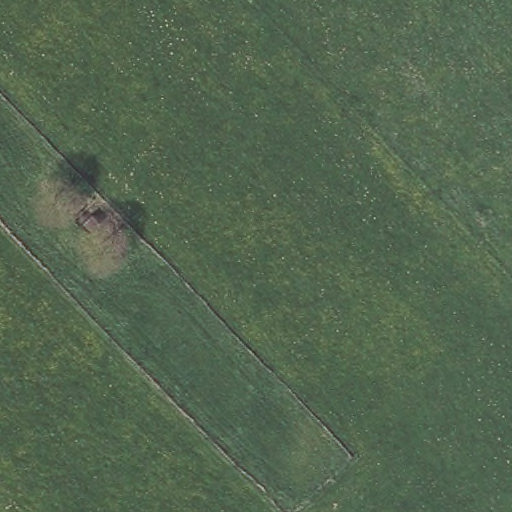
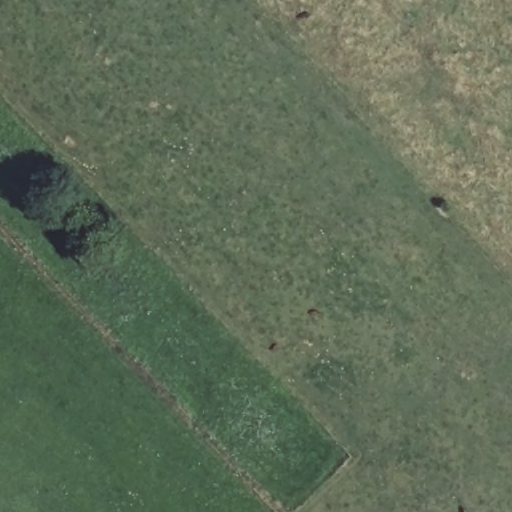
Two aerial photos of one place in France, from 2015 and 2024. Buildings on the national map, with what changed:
unchanged [(90,199),(112,219),(87,233),(72,214),(90,199)]

